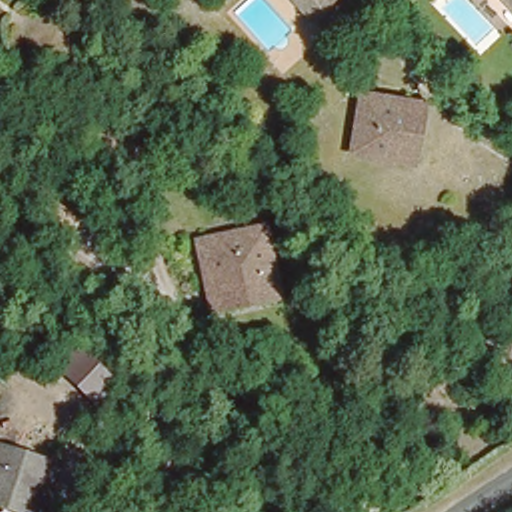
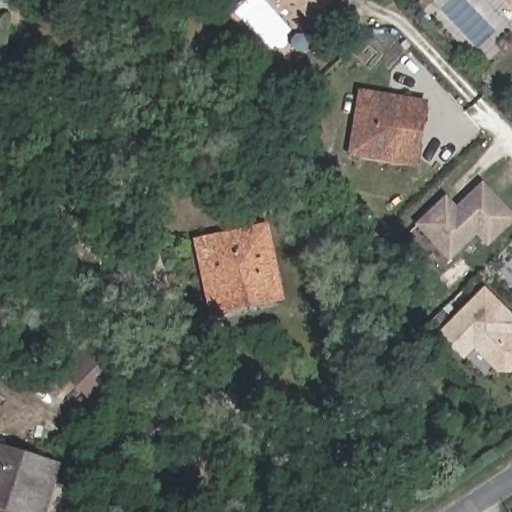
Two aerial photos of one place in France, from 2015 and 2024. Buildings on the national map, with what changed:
unchanged [(307,10),(298,0),(319,0),(307,10)]
unchanged [(508,0),(512,0),(512,4),(508,0)]
unchanged [(414,158),(353,150),(361,87),(423,95),(419,119),(416,141),(414,158)]
unchanged [(115,114),(146,150),(124,169),(92,137),(115,114)]
new [(487,247),(476,236),(448,262),(414,225),(445,194),(456,207),(482,182),(512,213),(512,222),(487,247)]
new [(49,204),(75,223),(60,243),(34,224),(49,204)]
unchanged [(214,308),(196,241),(265,221),(284,288),(264,294),(236,302),(214,308)]
new [(512,315),(512,333),(510,335),(512,337),(512,370),(511,371),(500,371),(476,345),(465,355),(444,332),(488,289),(512,315)]
unchanged [(93,353),(126,387),(109,405),(75,371),(93,353)]
new [(143,403),(151,395),(190,434),(181,443),(169,430),(154,444),(140,430),(155,416),(143,403)]
unchanged [(41,509),(0,500),(0,444),(54,456),(41,509)]

